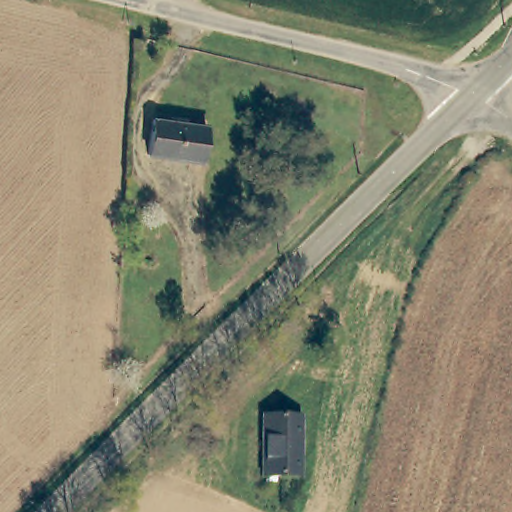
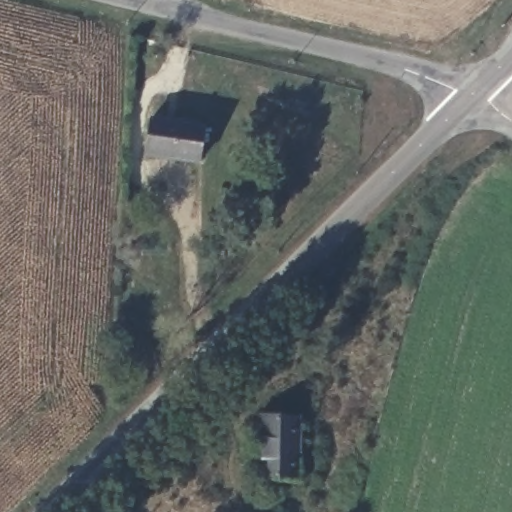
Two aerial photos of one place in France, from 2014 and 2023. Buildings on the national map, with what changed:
unchanged [(201,163),(147,156),(152,118),(206,125),(201,163)]
unchanged [(300,478),(262,478),(263,419),(300,418),(300,478)]

